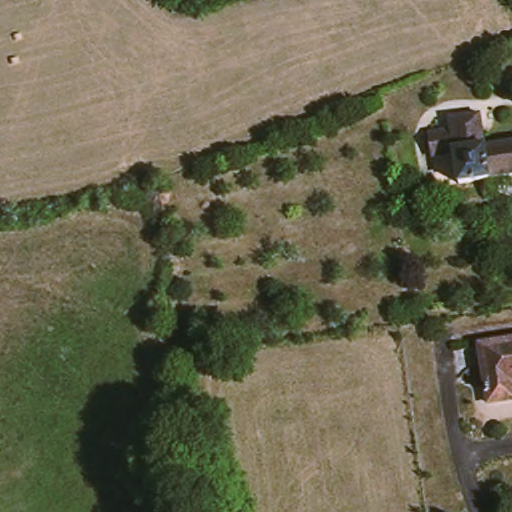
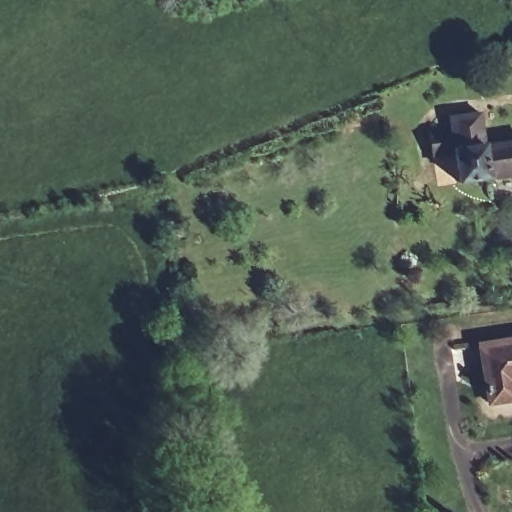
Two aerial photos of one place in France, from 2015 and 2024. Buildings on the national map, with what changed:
unchanged [(450,152),(429,156),(425,131),(447,127),(445,118),(476,114),(480,145),(512,140),(512,174),(455,182),(450,152)]
unchanged [(512,337),(512,378),(508,379),(511,397),(489,401),(478,342),(512,337)]

